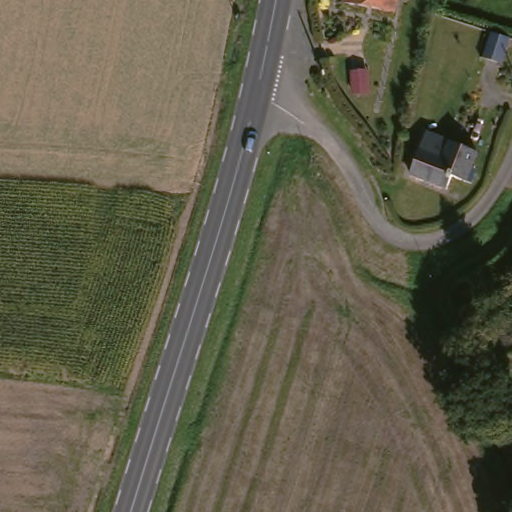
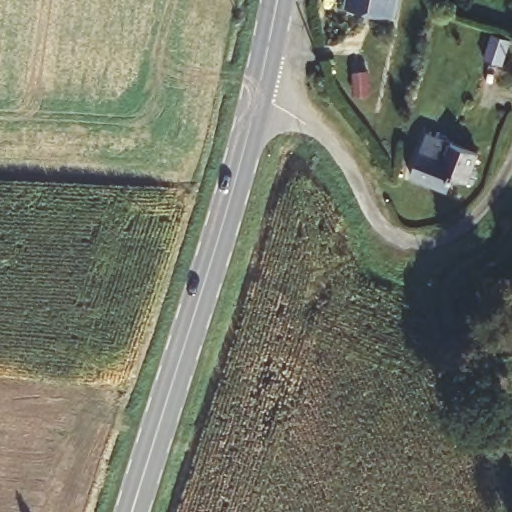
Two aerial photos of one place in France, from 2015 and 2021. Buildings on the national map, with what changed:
unchanged [(350,9),(352,0),(403,0),(399,19),(350,9)]
unchanged [(509,34),(502,59),(483,54),(491,29),(509,34)]
unchanged [(335,40),(360,38),(362,55),(336,57),(335,40)]
unchanged [(472,153),(463,181),(449,176),(447,186),(412,173),(425,134),(472,153)]

